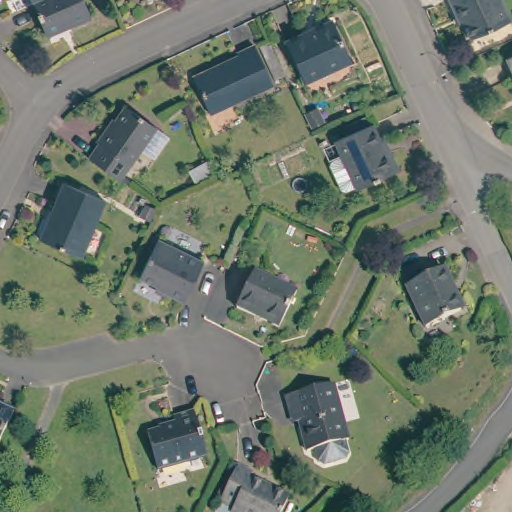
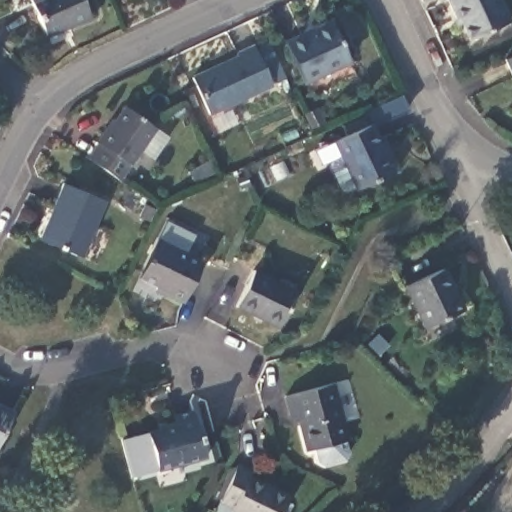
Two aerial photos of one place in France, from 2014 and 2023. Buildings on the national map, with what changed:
unchanged [(51,46),(31,0),(58,0),(59,0),(60,0),(82,0),(95,27),(51,46)]
unchanged [(512,29),(512,30),(470,50),(460,27),(456,29),(444,0),(499,0),(512,29)]
unchanged [(285,44),(331,23),(349,62),(304,83),(285,44)]
unchanged [(284,81),(275,85),(258,50),(267,46),(284,81)]
unchanged [(272,90),(209,120),(192,84),(238,62),(236,60),(254,51),(272,90)]
unchanged [(512,74),(505,59),(512,56),(512,74)]
unchanged [(92,137),(102,122),(105,124),(120,102),(151,123),(164,132),(149,154),(135,145),(115,175),(105,169),(84,155),(95,139),(92,137)]
unchanged [(346,191),(334,166),(336,161),(346,156),(340,143),(353,137),(349,129),(370,119),(375,127),(388,157),(394,155),(402,171),(362,190),(361,187),(350,192),(346,191)]
unchanged [(215,172),(195,184),(189,172),(209,161),(215,172)]
unchanged [(40,240),(64,184),(105,201),(80,257),(40,240)]
unchanged [(158,240),(202,262),(182,303),(156,290),(157,287),(139,278),(158,240)]
unchanged [(458,313),(425,328),(405,286),(443,269),(455,295),(462,311),(458,313)]
unchanged [(254,271),(296,292),(278,327),(236,307),(254,271)]
unchanged [(318,467),(315,455),(306,456),(295,416),(290,417),(285,402),(333,388),(348,445),(345,446),(349,459),(345,465),(324,471),(318,467)]
unchanged [(0,442),(0,406),(14,413),(11,418),(0,442)]
unchanged [(206,457),(158,470),(147,433),(175,425),(174,417),(194,411),(206,457)]
new [(147,433),(158,470),(132,477),(121,440),(147,433)]
unchanged [(251,473),(250,477),(289,496),(281,512),(231,512),(233,508),(220,501),(237,465),(251,473)]

